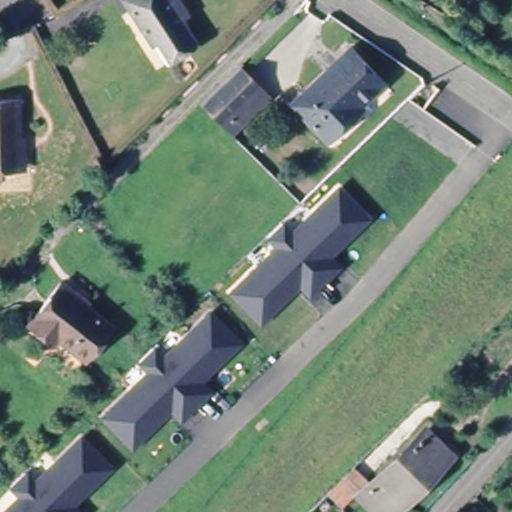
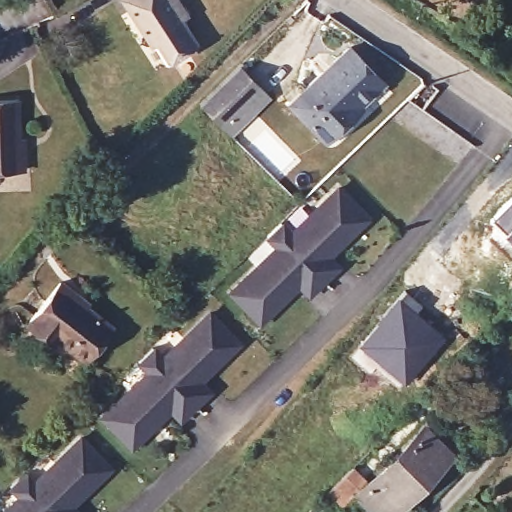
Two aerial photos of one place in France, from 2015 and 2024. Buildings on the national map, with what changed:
unchanged [(122,0),(128,0),(123,3),(122,0)]
unchanged [(181,52),(182,54),(174,60),(173,58),(167,62),(151,37),(147,39),(131,14),(135,12),(128,0),(173,0),(184,19),(177,23),(178,25),(192,46),(187,49),(181,52)]
unchanged [(382,82),(358,105),(360,107),(325,140),(290,104),(349,47),(382,82)]
unchanged [(238,66),(267,96),(229,134),(221,126),(199,104),(233,71),(238,66)]
unchanged [(18,169),(0,170),(0,100),(16,100),(17,140),(23,140),(24,169),(18,169)]
unchanged [(372,216),(332,254),(344,264),(310,297),(299,285),(259,323),(227,290),(272,246),(265,237),(285,217),(293,226),(339,184),(372,216)]
new [(512,197),(512,240),(490,219),(512,197)]
unchanged [(84,360),(56,337),(52,343),(27,323),(61,282),(77,295),(87,302),(84,306),(110,326),(84,360)]
new [(406,290),(422,305),(417,311),(446,337),(404,383),(358,345),(406,290)]
unchanged [(131,446),(101,416),(148,371),(138,360),(144,353),(151,347),(162,357),(208,312),(238,342),(198,380),(208,391),(194,405),(179,418),(170,408),(131,446)]
unchanged [(390,512),(374,512),(354,492),(340,507),(326,493),(352,467),(366,481),(366,480),(370,483),(424,429),(448,453),(390,512)]
unchanged [(69,505),(77,512),(2,512),(19,495),(9,485),(15,479),(22,472),(33,482),(79,437),(109,467),(69,505)]

